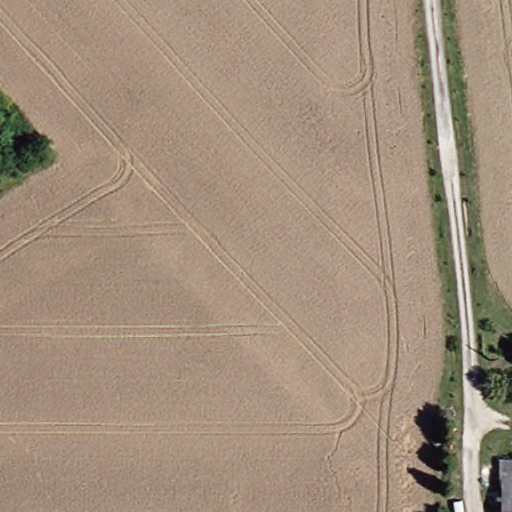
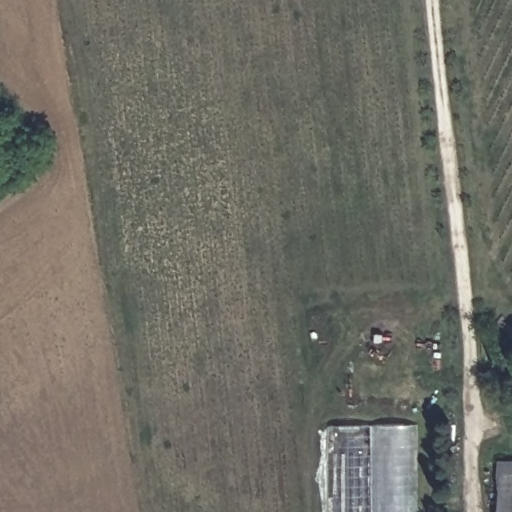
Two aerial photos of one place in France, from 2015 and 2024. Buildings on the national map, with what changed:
new [(418,427),(418,512),(331,512),(332,428),(418,427)]
unchanged [(512,460),(512,512),(494,512),(493,460),(512,460)]

